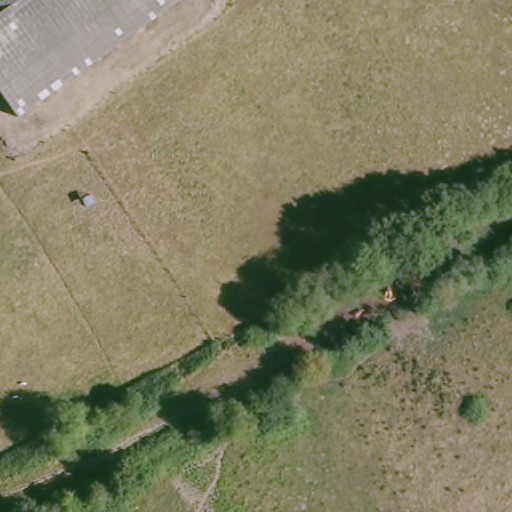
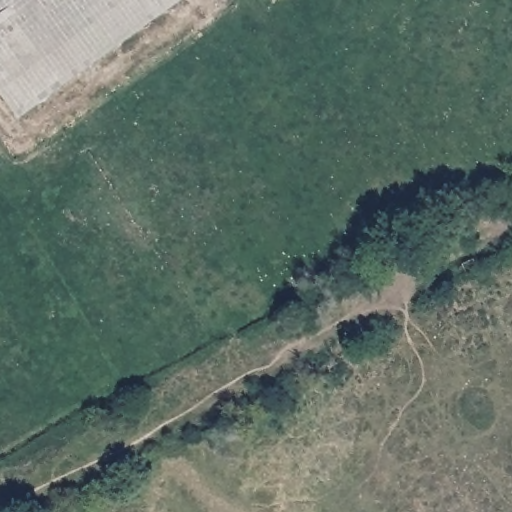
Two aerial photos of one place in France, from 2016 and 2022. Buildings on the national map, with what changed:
unchanged [(0,16),(0,0),(22,0),(0,16)]
unchanged [(183,0),(17,120),(0,96),(0,16),(22,0),(183,0)]

